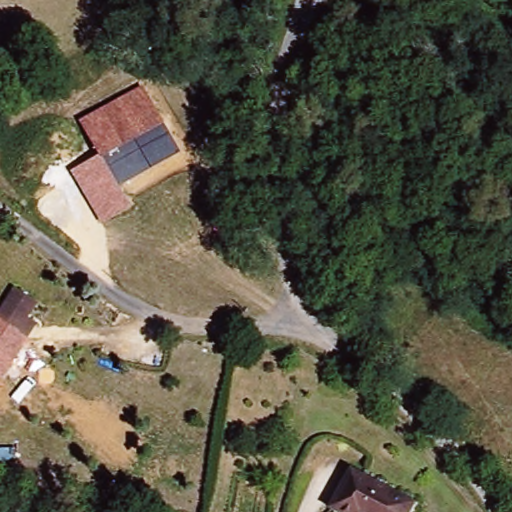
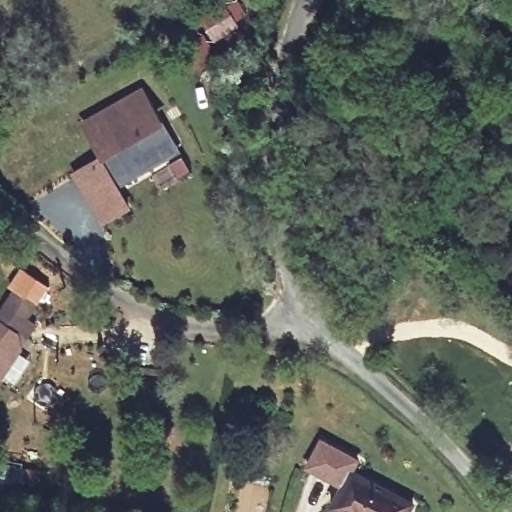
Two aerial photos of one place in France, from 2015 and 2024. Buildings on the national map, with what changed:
unchanged [(182,153),(120,189),(131,207),(101,226),(72,173),(99,156),(80,123),(142,86),(182,153)]
unchanged [(45,305),(32,321),(40,326),(32,341),(0,324),(0,312),(18,289),(45,305)]
unchanged [(0,379),(0,324),(29,340),(3,380),(0,379)]
new [(360,460),(343,489),(306,468),(322,438),(360,460)]
unchanged [(419,509),(417,512),(336,512),(359,473),(419,509)]

